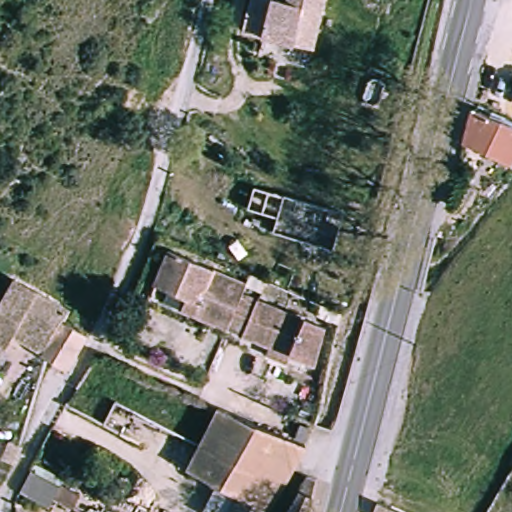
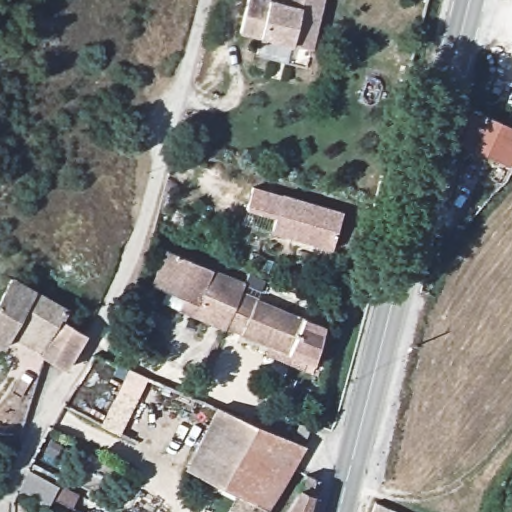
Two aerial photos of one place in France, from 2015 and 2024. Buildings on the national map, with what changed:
unchanged [(314,49),(262,37),(243,32),(250,0),(270,0),(288,5),(289,0),(326,0),(314,49)]
unchanged [(475,161),(460,156),(473,109),(512,119),(512,157),(480,149),(475,161)]
new [(342,214),(331,252),(270,235),(276,219),(246,211),(253,188),(342,214)]
unchanged [(240,286),(236,295),(323,330),(309,365),(222,329),(220,335),(183,320),(190,305),(147,288),(160,255),(240,286)]
unchanged [(65,312),(39,355),(0,335),(0,300),(12,282),(32,292),(65,312)]
unchanged [(62,377),(45,366),(37,361),(39,355),(65,312),(76,318),(70,326),(86,334),(62,377)]
unchanged [(273,502),(234,484),(214,476),(192,466),(199,443),(210,402),(302,447),(273,502)]
unchanged [(288,404),(302,408),(300,420),(285,418),(288,404)]
unchanged [(3,469),(0,468),(0,450),(10,453),(3,469)]
unchanged [(316,467),(306,512),(283,512),(309,463),(316,467)]
unchanged [(40,471),(72,487),(65,502),(60,512),(53,512),(27,499),(30,494),(40,471)]
unchanged [(224,503),(234,484),(273,502),(268,512),(235,512),(236,510),(224,503)]

